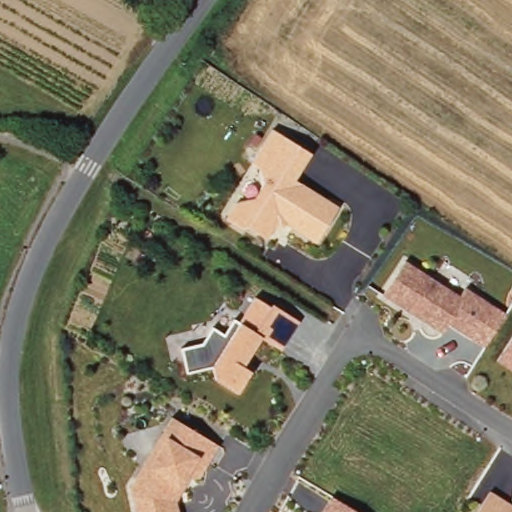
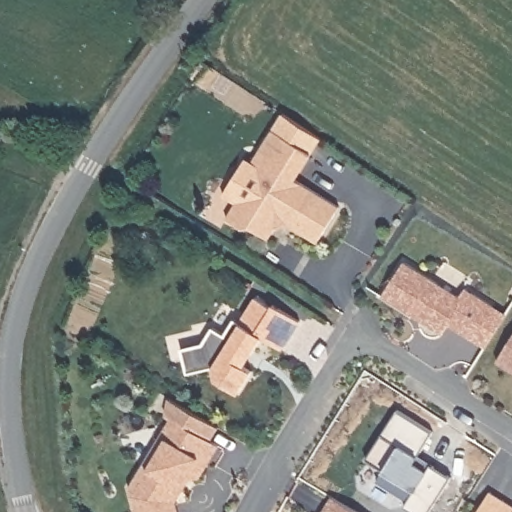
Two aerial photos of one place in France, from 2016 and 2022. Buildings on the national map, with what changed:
unchanged [(236,200),(255,196),(265,182),(261,166),(253,160),(274,127),(313,152),(296,178),(339,206),(316,241),(288,223),(274,226),(267,237),(248,224),(242,225),(226,215),(236,200)]
unchanged [(422,266),(477,303),(482,294),(510,313),(488,346),(465,330),(458,340),(399,300),(422,266)]
unchanged [(229,384),(226,371),(200,377),(195,352),(216,347),(226,331),(238,338),(248,322),(254,326),(269,301),(285,311),(287,308),(313,325),(295,354),(275,341),(257,370),(265,376),(251,397),(229,384)]
unchanged [(512,347),(512,369),(502,362),(512,347)]
new [(442,439),(422,470),(435,478),(439,472),(459,485),(441,512),(411,512),(415,507),(384,486),(391,476),(373,464),(407,415),(442,439)]
unchanged [(208,479),(199,479),(184,503),(186,512),(144,512),(139,487),(182,418),(228,447),(208,479)]
unchanged [(512,509),(512,512),(479,512),(491,494),(512,509)]
unchanged [(343,501),(359,512),(323,512),(334,495),(343,501)]

